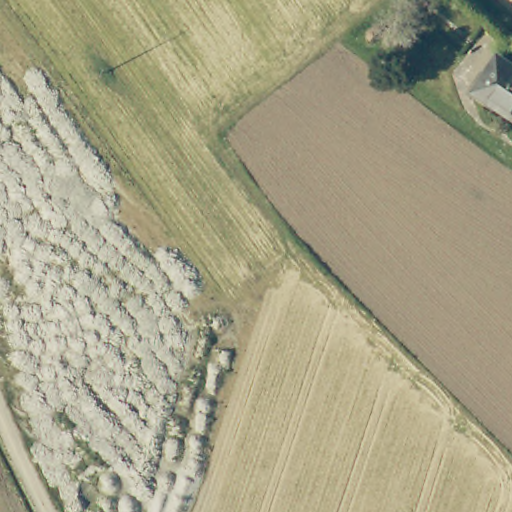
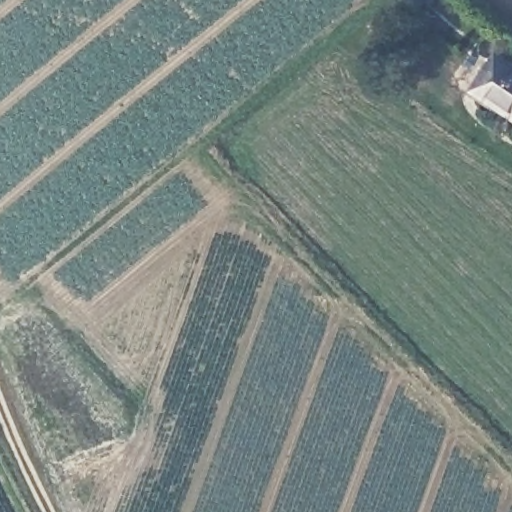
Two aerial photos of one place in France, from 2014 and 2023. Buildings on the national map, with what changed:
unchanged [(512,110),(479,88),(498,58),(512,67),(512,110)]

